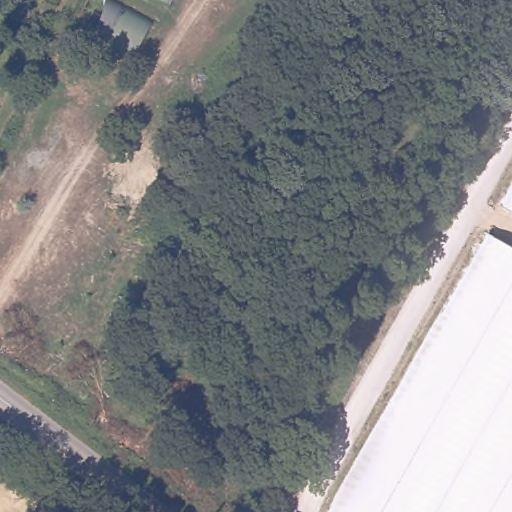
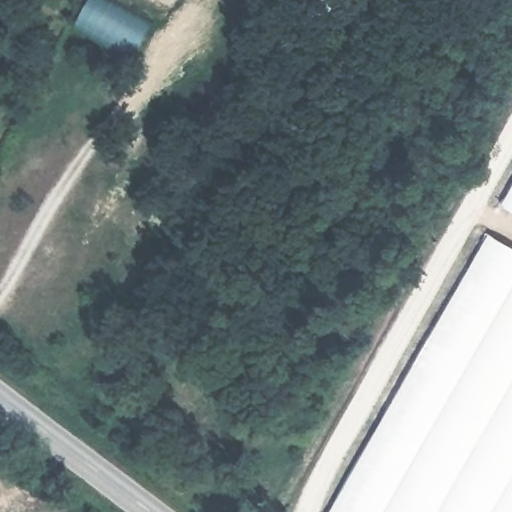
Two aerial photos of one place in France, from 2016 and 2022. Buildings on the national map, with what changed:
unchanged [(152,25),(138,55),(78,29),(96,0),(103,0),(152,25)]
unchanged [(512,195),(512,211),(505,207),(512,195)]
unchanged [(512,512),(330,512),(488,237),(512,251),(512,512)]

